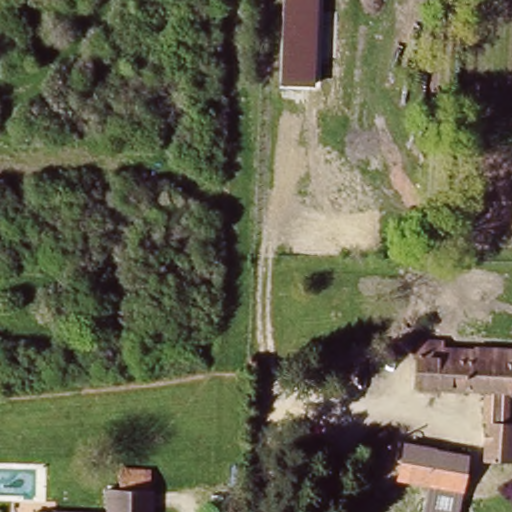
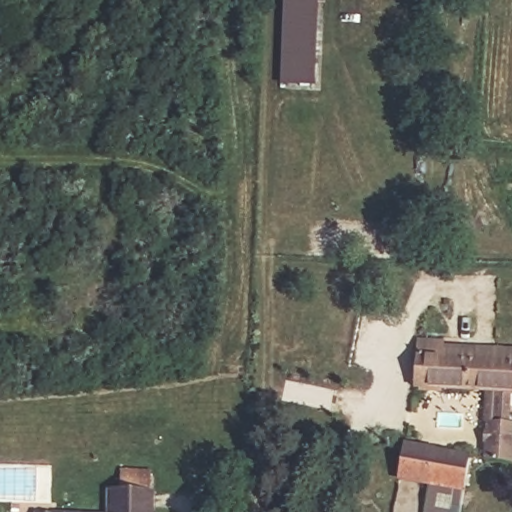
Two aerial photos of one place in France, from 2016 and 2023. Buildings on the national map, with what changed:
unchanged [(319,0),(315,85),(282,84),(285,0),(319,0)]
unchanged [(414,348),(512,351),(512,389),(412,385),(414,348)]
unchanged [(499,465),(498,402),(512,400),(512,464),(499,465)]
unchanged [(455,489),(424,482),(405,478),(412,444),(429,449),(462,454),(455,489)]
unchanged [(143,512),(104,512),(107,491),(154,492),(152,511),(143,512)]
unchanged [(159,511),(159,512),(143,512),(152,511),(159,511)]

